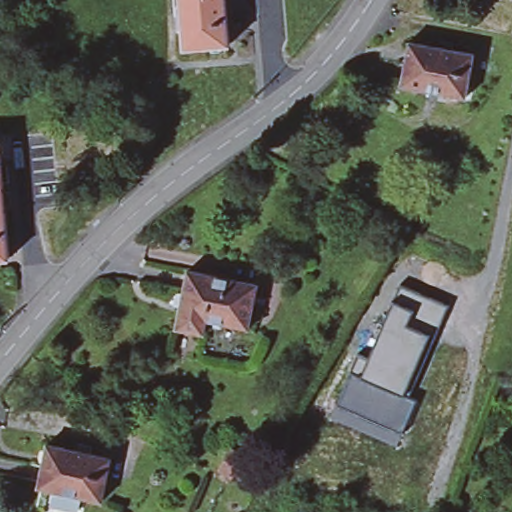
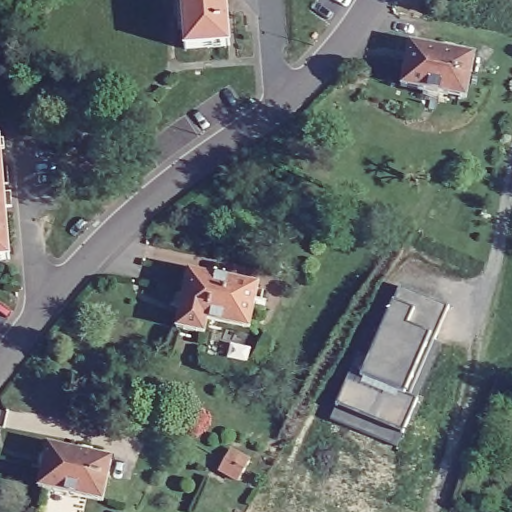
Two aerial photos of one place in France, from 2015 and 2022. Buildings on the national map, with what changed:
unchanged [(227,47),(183,51),(179,0),(223,0),(227,47)]
unchanged [(474,60),(467,103),(403,92),(411,49),(474,60)]
unchanged [(0,259),(0,140),(9,258),(0,259)]
unchanged [(258,287),(249,331),(207,322),(205,335),(178,329),(188,273),(258,287)]
unchanged [(433,340),(428,337),(406,395),(416,402),(402,434),(397,447),(334,419),(339,407),(359,358),(369,363),(394,303),(400,289),(449,309),(433,340)]
unchanged [(111,460),(103,503),(39,490),(48,447),(111,460)]
unchanged [(215,468),(221,458),(226,449),(247,460),(241,470),(236,480),(215,468)]

